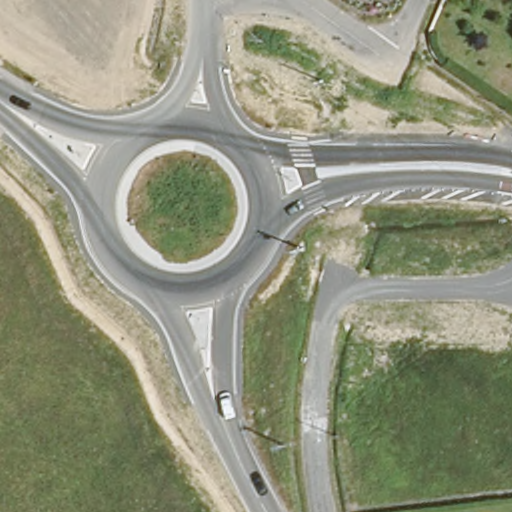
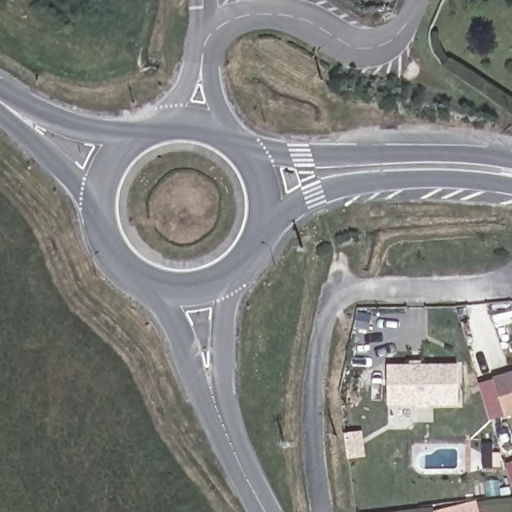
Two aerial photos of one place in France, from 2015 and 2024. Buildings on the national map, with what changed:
new [(387,406),(386,364),(458,364),(459,406),(387,406)]
new [(492,378),(512,372),(512,416),(505,418),(492,378)]

